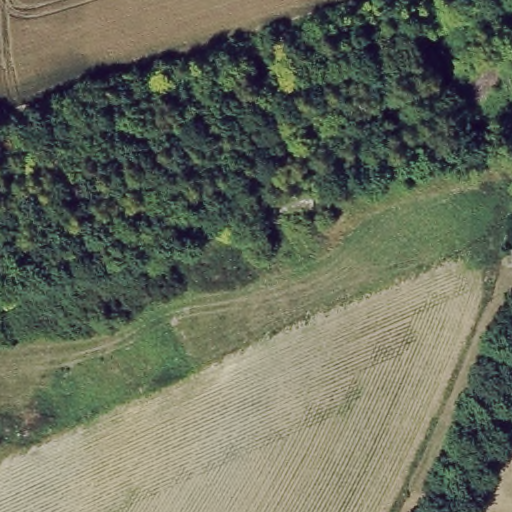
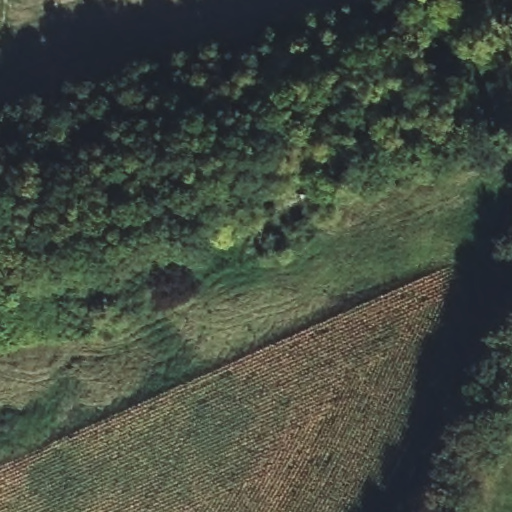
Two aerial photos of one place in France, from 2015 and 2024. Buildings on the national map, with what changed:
unchanged [(490,56),(512,90),(480,109),(453,75),(490,56)]

